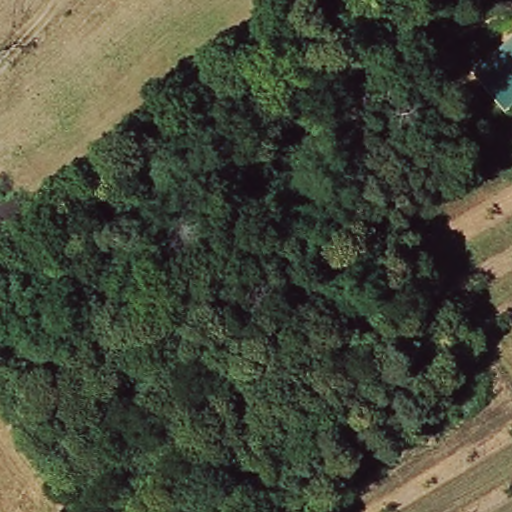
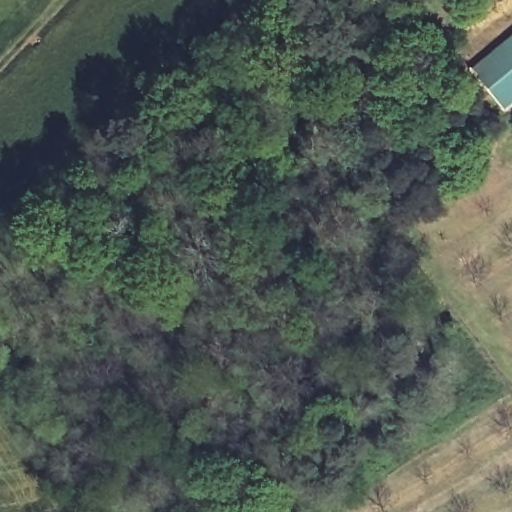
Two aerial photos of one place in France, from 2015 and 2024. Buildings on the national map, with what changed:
unchanged [(512,34),(512,101),(501,110),(467,71),(512,34)]

